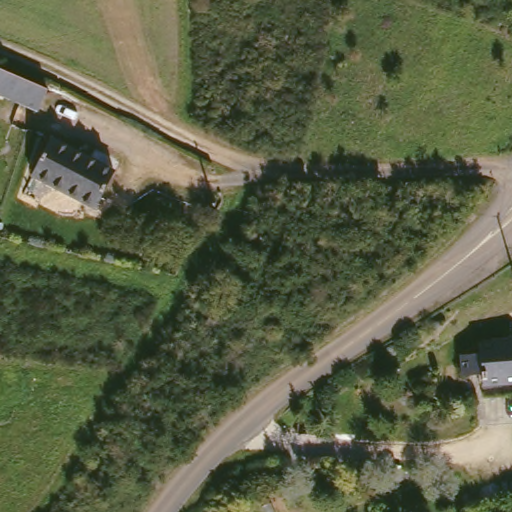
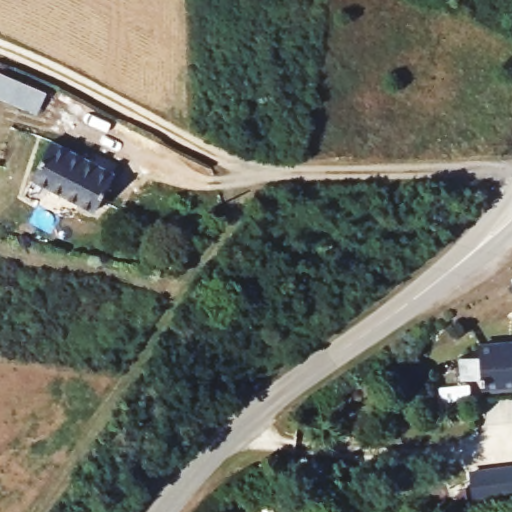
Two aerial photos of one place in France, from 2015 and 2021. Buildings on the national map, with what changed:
unchanged [(46,93),(40,114),(0,100),(0,77),(10,80),(46,93)]
unchanged [(31,175),(44,143),(106,170),(93,208),(29,183),(31,175)]
unchanged [(459,357),(481,357),(481,351),(512,351),(512,388),(480,388),(480,378),(459,379),(459,357)]
new [(512,466),(512,491),(488,493),(471,493),(469,468),(485,468),(512,466)]

